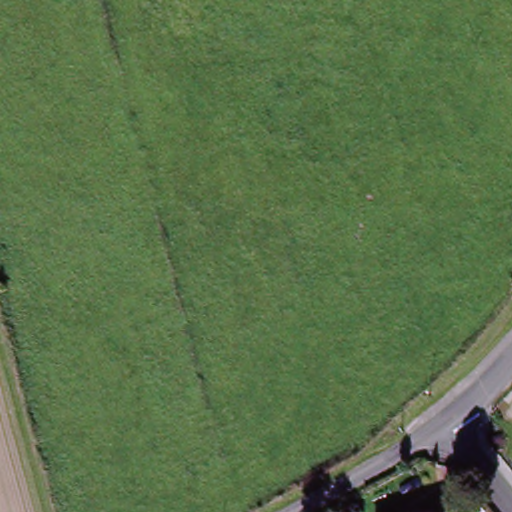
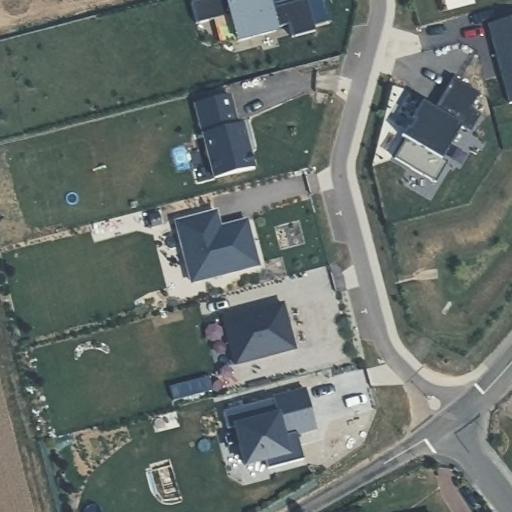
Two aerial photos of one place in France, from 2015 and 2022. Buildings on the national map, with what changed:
new [(232,15),(197,25),(192,4),(208,0),(237,0),(237,2),(245,0),(269,0),(272,11),(291,6),(296,24),(277,29),(277,32),(239,42),(232,15)]
new [(512,16),(512,100),(508,101),(485,23),(512,16)]
new [(389,157),(401,139),(396,135),(401,127),(404,129),(410,120),(407,119),(417,102),(430,110),(450,79),(475,95),(467,109),(476,115),(466,132),(457,126),(436,157),(442,161),(428,183),(389,157)]
new [(226,94),(233,124),(238,122),(250,169),(211,179),(193,102),(226,94)]
new [(221,233),(245,227),(255,265),(192,281),(177,221),(215,211),(221,233)]
new [(281,303),(293,348),(233,363),(221,318),(281,303)]
new [(168,385),(207,375),(211,390),(172,400),(168,385)]
new [(313,428),(291,434),(300,465),(263,475),(261,465),(243,470),(232,432),(222,435),(217,416),(305,392),(313,428)]
unchanged [(433,511),(433,512),(430,512),(433,511)]

